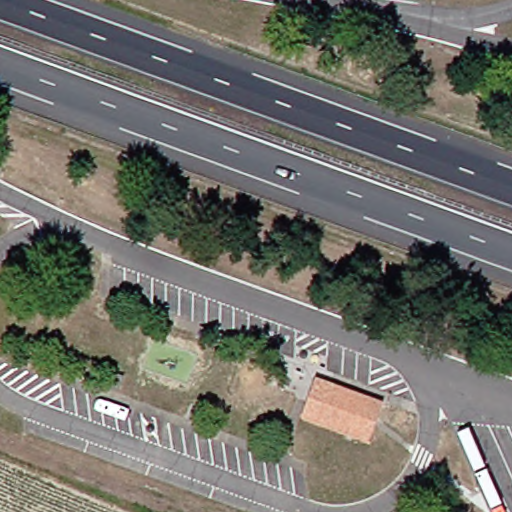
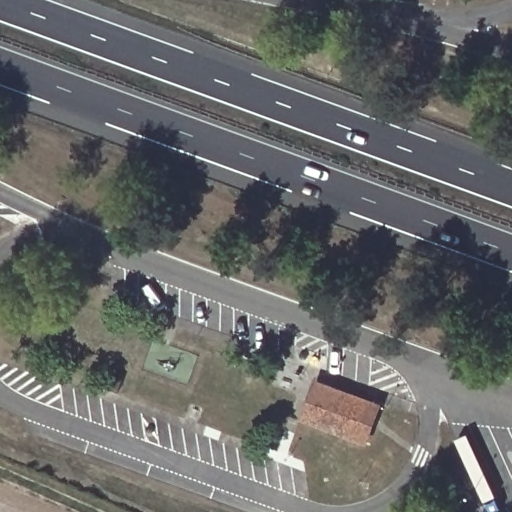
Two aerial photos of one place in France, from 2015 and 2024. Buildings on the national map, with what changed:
unchanged [(314,391),(365,370),(384,425),(336,445),(314,391)]

